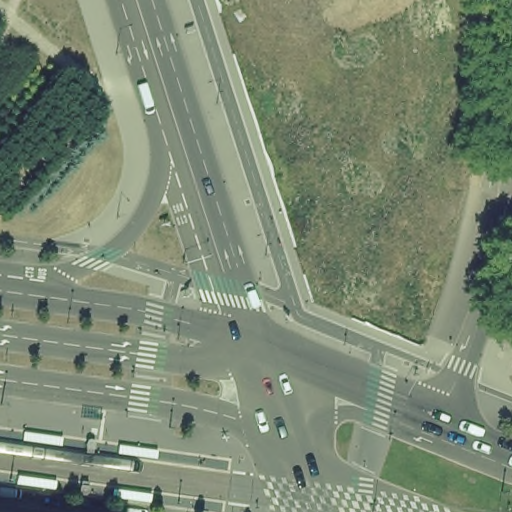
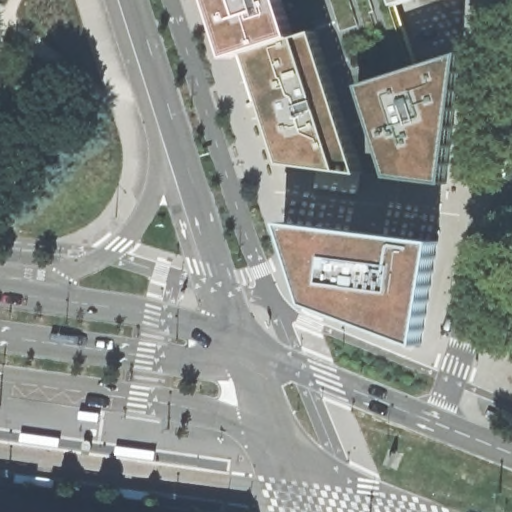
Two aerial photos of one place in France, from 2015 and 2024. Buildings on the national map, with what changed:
new [(398,5),(417,66),(463,52),(447,184),(390,177),(373,123),(351,130),(323,39),(301,47),(253,62),(250,53),(232,58),(213,0),(414,0),(398,5)]
new [(301,47),(323,39),(351,130),(365,173),(286,163),(253,62),(301,47)]
new [(443,251),(427,355),(316,314),(289,232),(443,251)]

